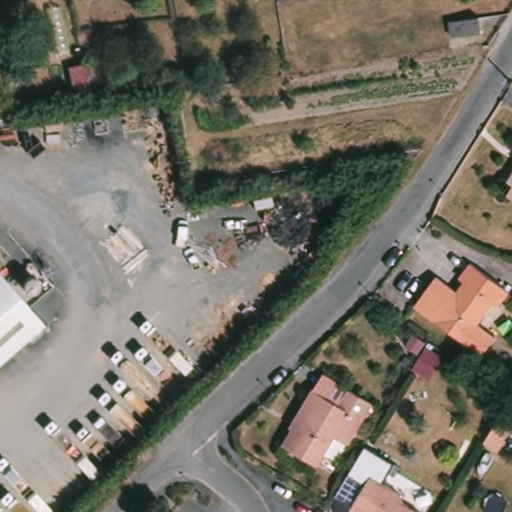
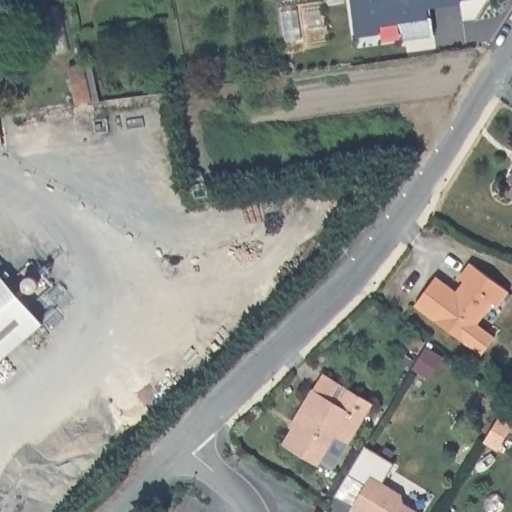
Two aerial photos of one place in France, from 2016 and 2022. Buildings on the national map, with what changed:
new [(430,18),(432,35),(403,39),(398,23),(377,25),(378,34),(354,36),(349,0),(425,0),(427,18),(430,18)]
new [(461,23),(458,4),(429,8),(430,18),(427,18),(425,0),(460,0),(463,0),(488,0),(475,20),(461,23)]
unchanged [(474,24),(476,39),(446,44),(445,28),(474,24)]
unchanged [(80,79),(87,108),(73,109),(66,82),(80,79)]
unchanged [(510,180),(512,177),(512,181),(510,180)]
unchanged [(508,194),(512,187),(512,197),(508,194)]
unchanged [(472,262),(511,289),(500,304),(495,301),(480,323),(498,335),(485,354),(417,306),(438,277),(459,292),(466,280),(461,277),(472,262)]
unchanged [(0,350),(0,268),(41,314),(0,350)]
unchanged [(340,389),(365,404),(341,445),(328,438),(311,467),(275,446),(285,431),(282,429),(285,423),(305,391),(331,406),(340,389)]
unchanged [(492,445),(502,428),(512,433),(512,443),(501,462),(487,454),(492,445)]
unchanged [(366,476),(396,494),(398,503),(413,512),(352,512),(346,509),(366,476)]

